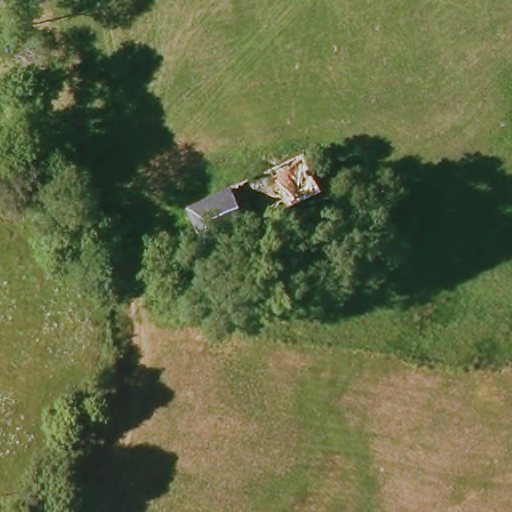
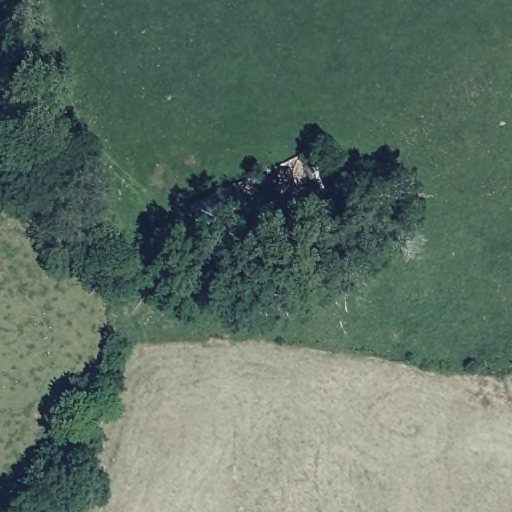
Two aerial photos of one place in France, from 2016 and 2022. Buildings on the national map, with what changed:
unchanged [(306,154),(323,189),(315,196),(205,244),(187,206),(219,190),(306,154)]

